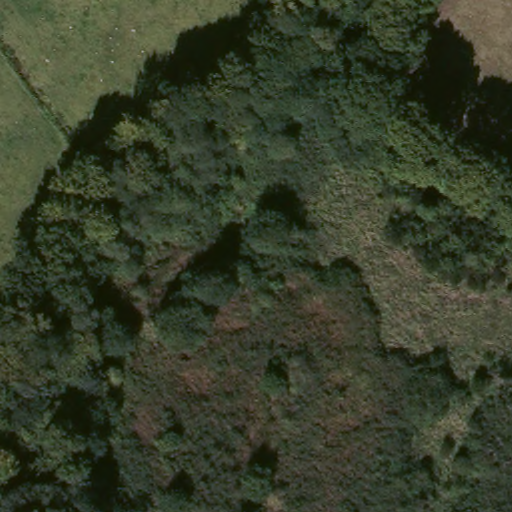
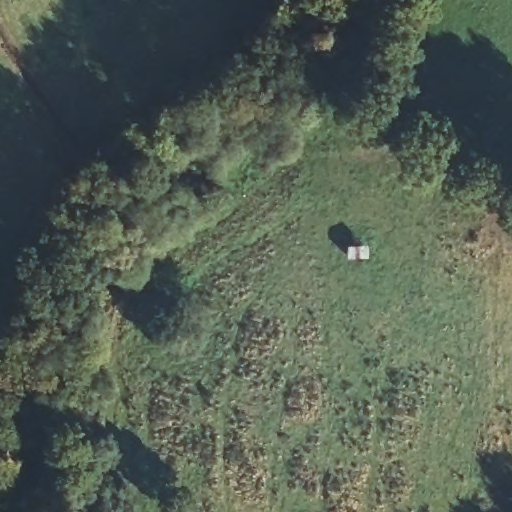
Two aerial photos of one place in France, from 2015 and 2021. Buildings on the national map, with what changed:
[]

